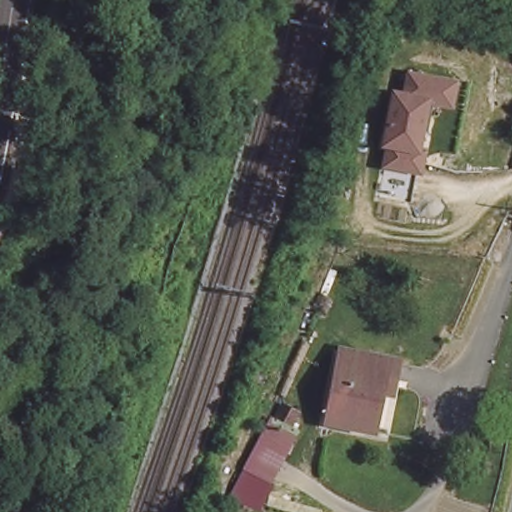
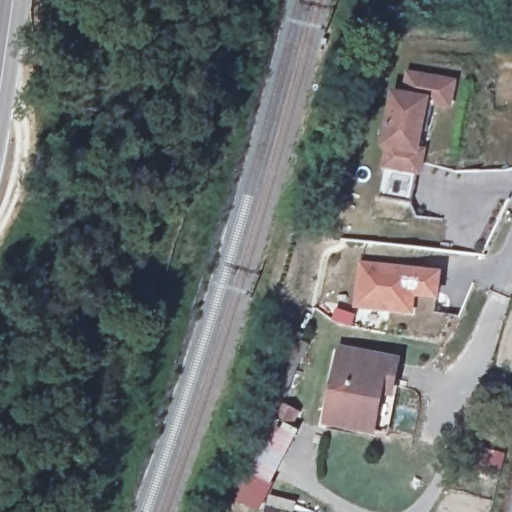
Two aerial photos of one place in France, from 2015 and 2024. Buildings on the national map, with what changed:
unchanged [(456,91),(450,111),(434,110),(416,178),(382,169),(387,150),(382,149),(395,98),(406,101),(407,95),(413,96),(417,81),(456,91)]
new [(442,269),(439,294),(417,292),(416,308),(353,303),(357,261),(442,269)]
unchanged [(395,361),(377,431),(322,416),(340,349),(395,361)]
unchanged [(264,482),(238,463),(268,415),(299,429),(264,482)]

